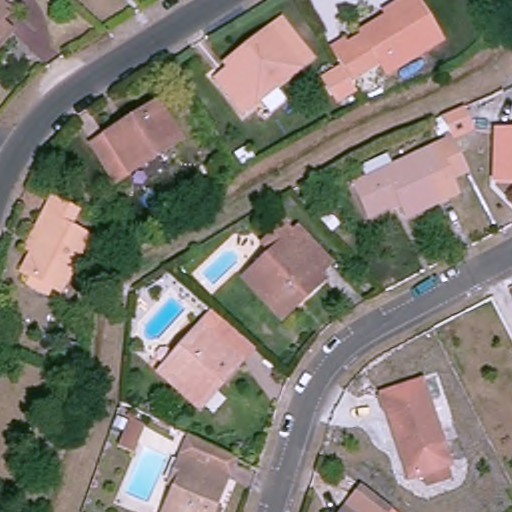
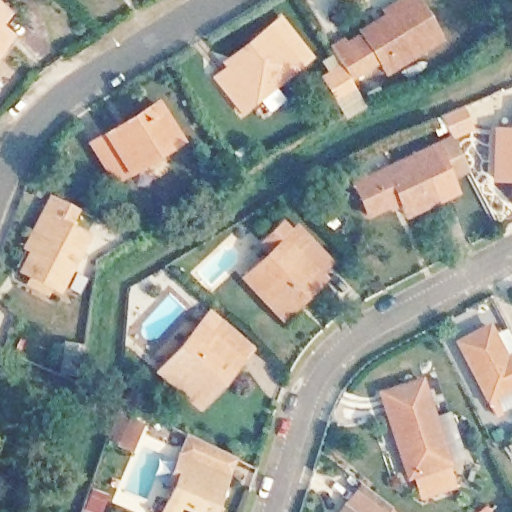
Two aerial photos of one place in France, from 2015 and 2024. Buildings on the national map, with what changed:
unchanged [(380,15),(403,0),(414,0),(439,42),(428,48),(408,15),(388,27),(383,21),(380,15)]
unchanged [(2,24),(10,32),(0,43),(0,1),(13,12),(2,24)]
unchanged [(355,30),(360,36),(383,21),(388,27),(408,15),(428,48),(382,76),(370,57),(343,74),(327,48),(355,30)]
unchanged [(238,106),(213,73),(226,65),(221,57),(250,36),(269,24),(273,28),(288,17),(313,55),(238,106)]
unchanged [(342,111),(329,89),(346,79),(359,100),(342,111)]
unchanged [(183,137),(166,149),(131,172),(119,181),(94,142),(159,102),(183,137)]
unchanged [(489,180),(493,130),(512,131),(512,181),(489,180)]
unchanged [(445,134),(463,169),(442,180),(449,195),(399,219),(391,203),(361,217),(347,185),(445,134)]
unchanged [(69,237),(88,244),(68,295),(30,280),(38,260),(29,256),(43,222),(50,202),(76,216),(69,237)]
unchanged [(295,311),(281,324),(244,285),(267,262),(257,247),(282,221),(295,234),(325,267),(317,275),(322,283),(295,311)]
new [(491,322),(507,356),(512,354),(512,391),(486,404),(454,342),(491,322)]
unchanged [(189,397),(159,371),(196,327),(212,341),(229,326),(250,345),(221,378),(199,405),(189,397)]
new [(60,343),(81,344),(80,370),(59,369),(60,343)]
unchanged [(394,435),(381,391),(422,376),(449,457),(443,460),(450,475),(430,482),(424,467),(416,470),(405,472),(394,435)]
unchanged [(160,497),(168,464),(176,466),(180,454),(187,434),(226,453),(209,510),(218,512),(164,512),(168,500),(160,497)]
unchanged [(362,483),(388,503),(381,512),(343,512),(345,510),(362,483)]

